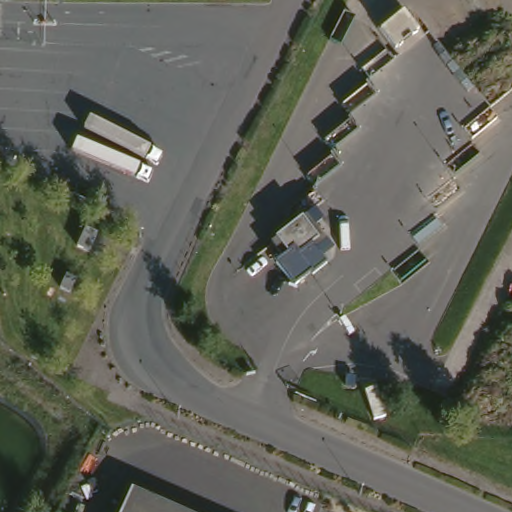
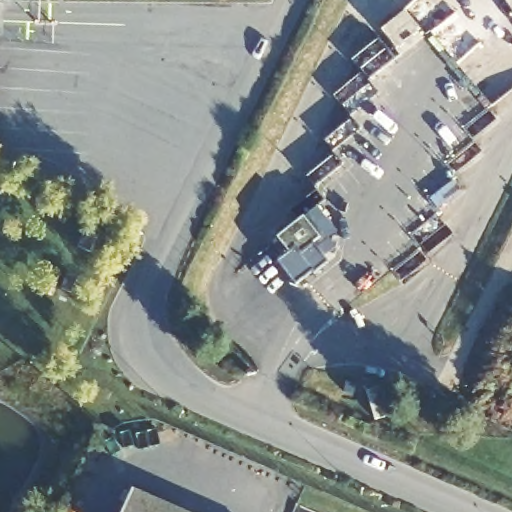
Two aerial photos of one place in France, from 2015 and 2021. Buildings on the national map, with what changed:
unchanged [(380,34),(405,11),(425,34),(397,56),(380,34)]
unchanged [(285,256),(273,242),(298,220),(316,240),(310,246),(325,264),(314,274),(310,268),(291,284),(275,266),(285,256)]
unchanged [(72,243),(81,225),(92,230),(83,248),(72,243)]
unchanged [(61,271),(71,275),(65,288),(55,284),(61,271)]
unchanged [(124,512),(135,488),(189,512),(124,512)]

